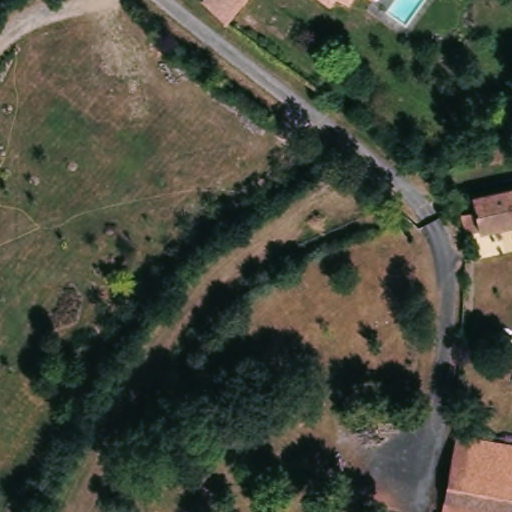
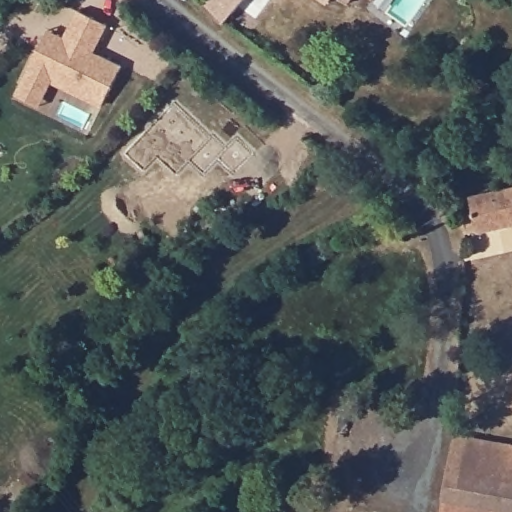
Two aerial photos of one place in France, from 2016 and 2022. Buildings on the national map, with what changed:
unchanged [(203,6),(208,0),(249,0),(228,25),(203,6)]
unchanged [(339,3),(335,0),(342,0),(339,3)]
unchanged [(356,2),(352,0),(358,0),(356,2)]
new [(39,34),(41,30),(50,34),(58,38),(71,10),(101,25),(87,52),(115,67),(96,105),(46,80),(40,93),(33,107),(9,95),(16,81),(39,34)]
unchanged [(469,246),(464,224),(478,220),(473,202),(512,193),(512,231),(469,246)]
unchanged [(512,447),(512,512),(445,512),(459,436),(512,447)]

